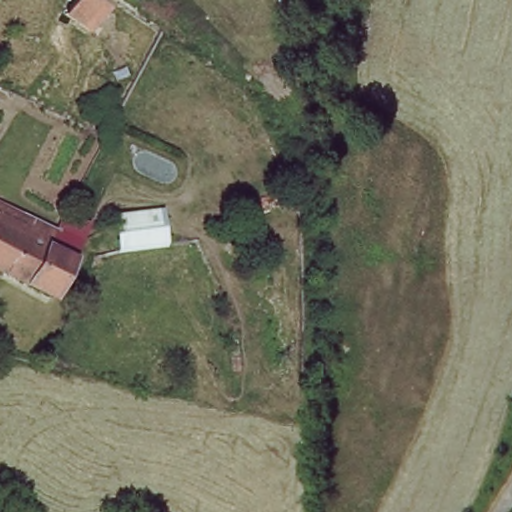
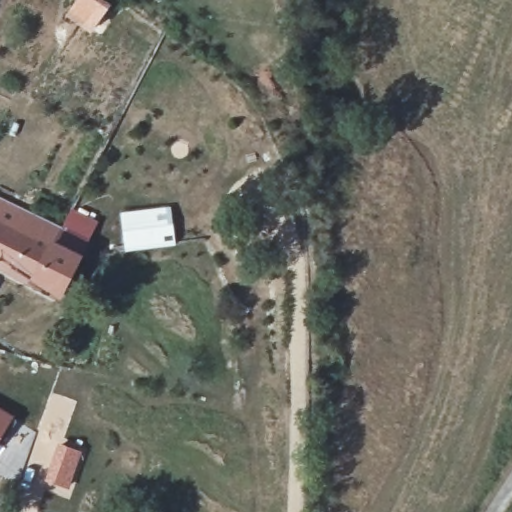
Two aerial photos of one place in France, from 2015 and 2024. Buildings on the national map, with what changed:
unchanged [(95,31),(73,16),(83,0),(99,0),(110,7),(95,31)]
unchanged [(121,212),(173,207),(178,245),(127,249),(121,212)]
unchanged [(39,216),(66,229),(58,245),(82,256),(61,298),(0,267),(0,213),(33,230),(39,216)]
new [(0,439),(0,407),(14,415),(0,439)]
new [(56,441),(82,451),(68,490),(43,481),(56,441)]

